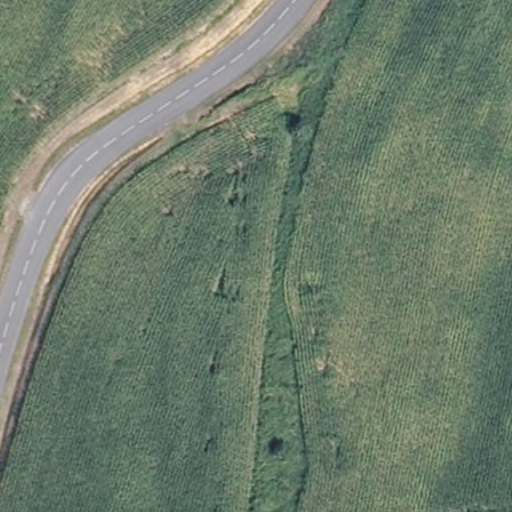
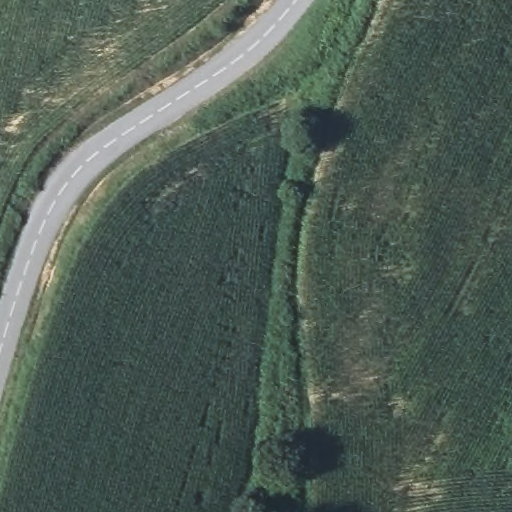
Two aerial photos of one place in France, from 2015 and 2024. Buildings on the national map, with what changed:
[]

